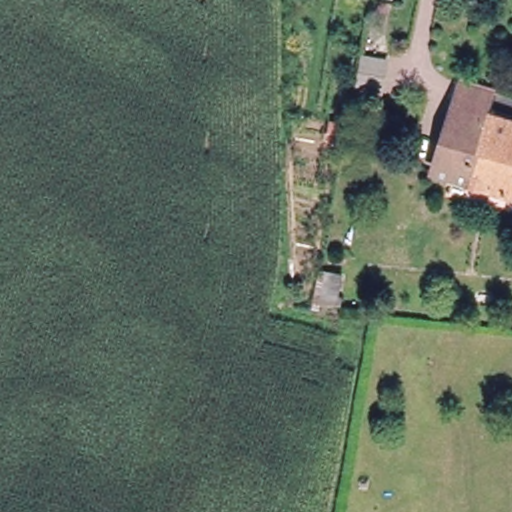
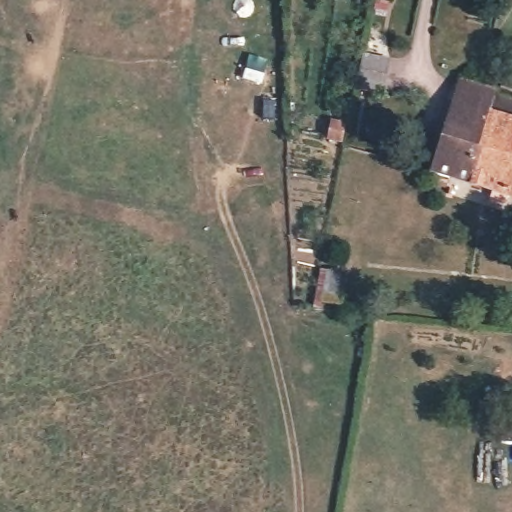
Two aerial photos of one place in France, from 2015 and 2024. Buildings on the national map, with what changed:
unchanged [(391,64),(381,102),(354,97),(361,57),(391,64)]
unchanged [(454,105),(460,88),(488,97),(483,114),(490,116),(512,123),(512,194),(510,199),(449,181),(434,177),(440,156),(454,105)]
unchanged [(348,281),(343,305),(329,302),(335,277),(348,281)]

